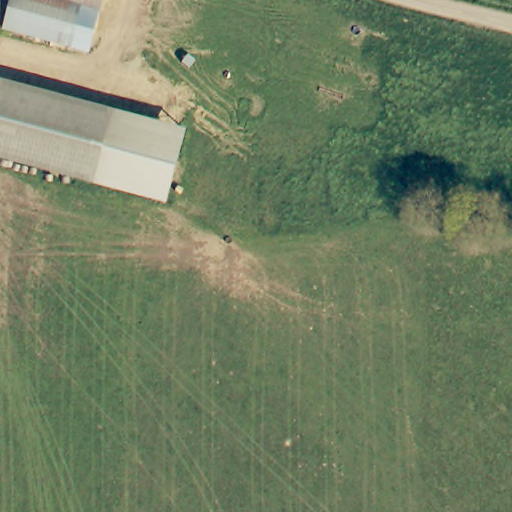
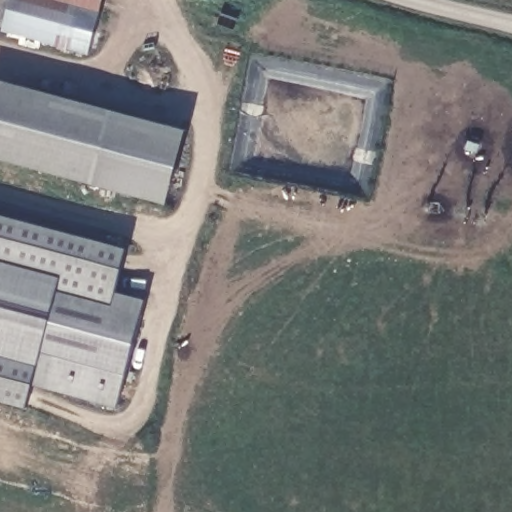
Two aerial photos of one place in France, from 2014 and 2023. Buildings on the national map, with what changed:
unchanged [(0,27),(0,0),(16,0),(8,29),(0,27)]
unchanged [(6,33),(8,29),(16,0),(52,0),(83,9),(71,51),(6,33)]
unchanged [(83,9),(52,0),(108,0),(104,15),(83,9)]
unchanged [(0,156),(0,78),(186,127),(168,198),(0,156)]
new [(116,291),(146,299),(118,407),(33,385),(26,408),(0,401),(0,214),(128,248),(116,291)]

